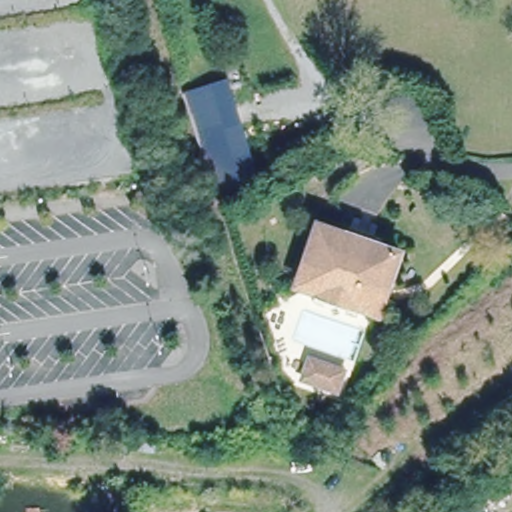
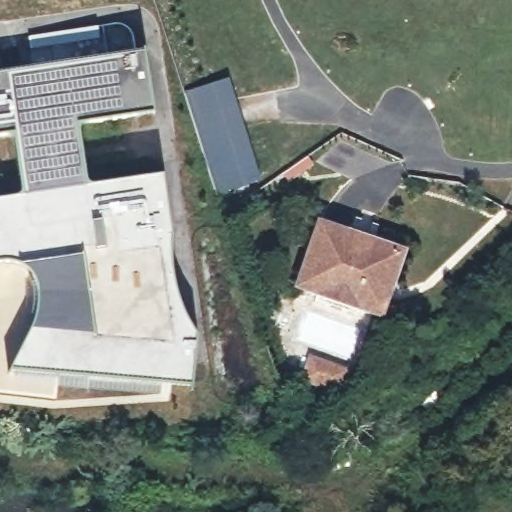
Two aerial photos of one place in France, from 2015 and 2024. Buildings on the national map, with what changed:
new [(156,110),(80,123),(89,187),(164,175),(173,235),(172,255),(174,281),(180,303),(197,337),(192,388),(13,373),(36,317),(39,292),(39,280),(31,267),(7,258),(0,257),(0,196),(24,192),(15,131),(0,133),(0,71),(146,47),(156,110)]
unchanged [(182,96),(224,83),(254,184),(212,197),(182,96)]
unchanged [(377,311),(294,277),(318,217),(345,228),(348,221),(371,229),(368,236),(402,251),(377,311)]
unchanged [(343,371),(333,390),(301,376),(309,358),(343,371)]

